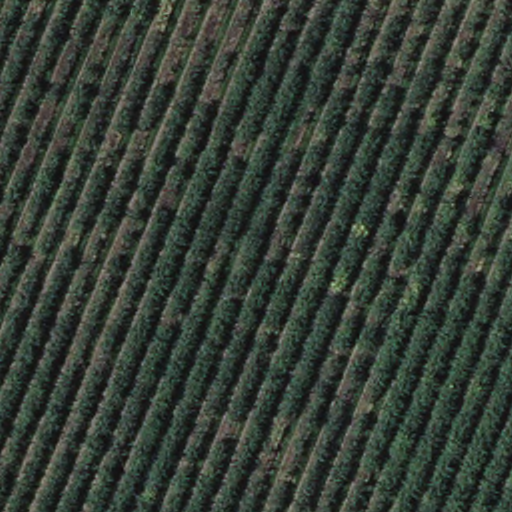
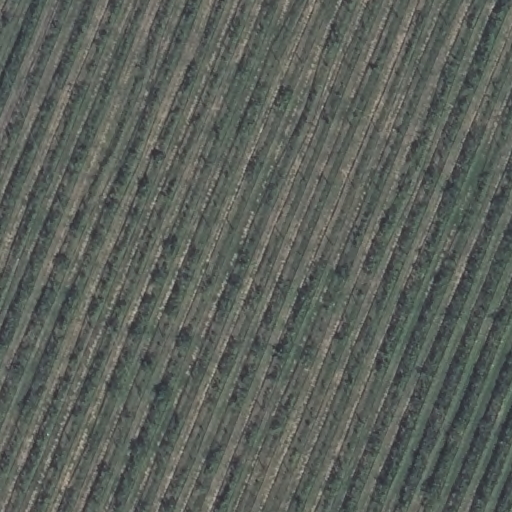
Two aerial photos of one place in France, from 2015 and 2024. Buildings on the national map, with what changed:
[]

